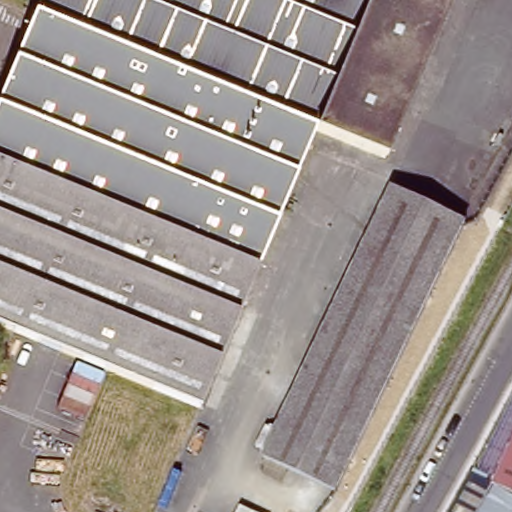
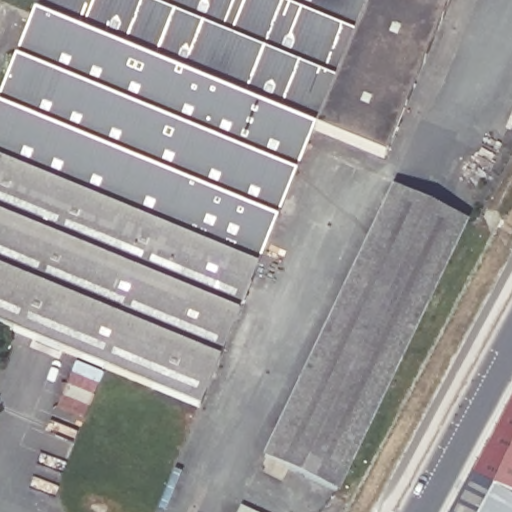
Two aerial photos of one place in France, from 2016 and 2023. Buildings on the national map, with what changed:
unchanged [(315,120),(198,398),(0,315),(0,128),(54,0),(448,0),(385,150),(315,120)]
unchanged [(392,193),(459,224),(335,490),(268,460),(392,193)]
unchanged [(512,443),(512,512),(497,512),(481,505),(512,443)]
unchanged [(481,505),(497,512),(477,512),(481,505)]

